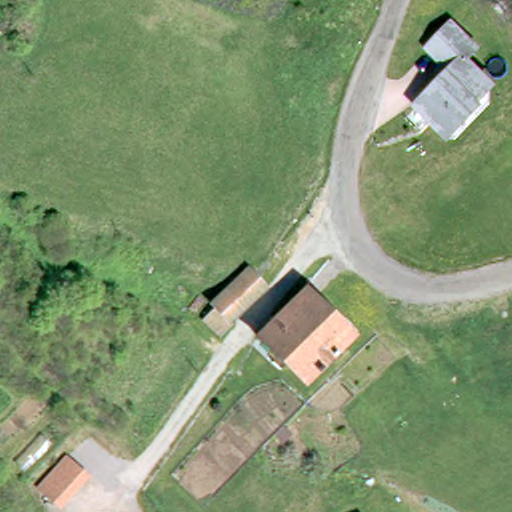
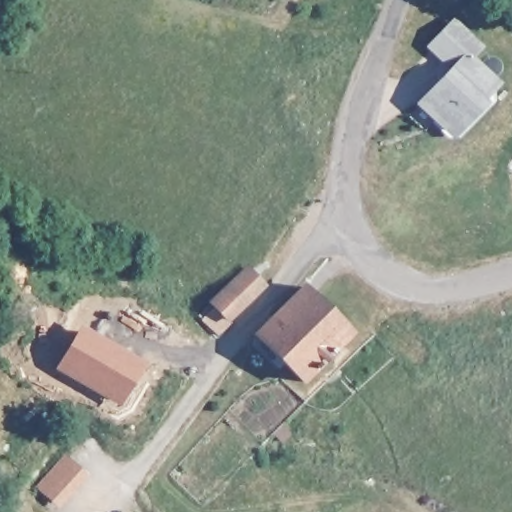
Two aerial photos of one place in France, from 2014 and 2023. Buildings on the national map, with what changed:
unchanged [(435,119),(422,105),(451,75),(428,55),(450,30),(467,44),(473,55),(466,65),(490,90),(470,112),(475,115),(457,134),(452,131),(450,135),(447,132),(442,137),(430,125),(435,119)]
unchanged [(217,300),(248,261),(260,270),(270,281),(239,317),(227,331),(222,330),(210,316),(221,302),(217,300)]
unchanged [(309,387),(260,342),(309,294),(355,340),(309,387)]
new [(82,331),(139,365),(117,401),(60,367),(82,331)]
unchanged [(60,508),(40,490),(69,458),(89,476),(60,508)]

